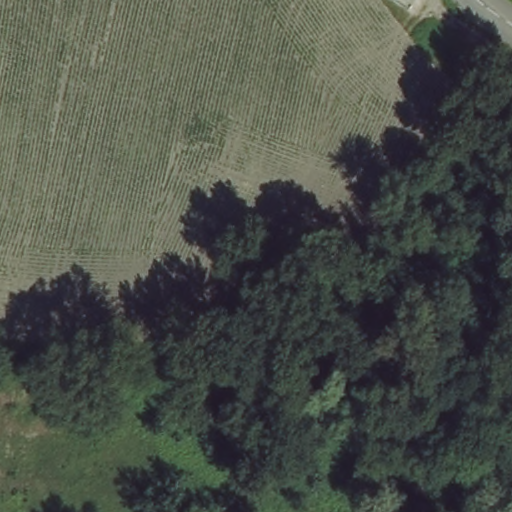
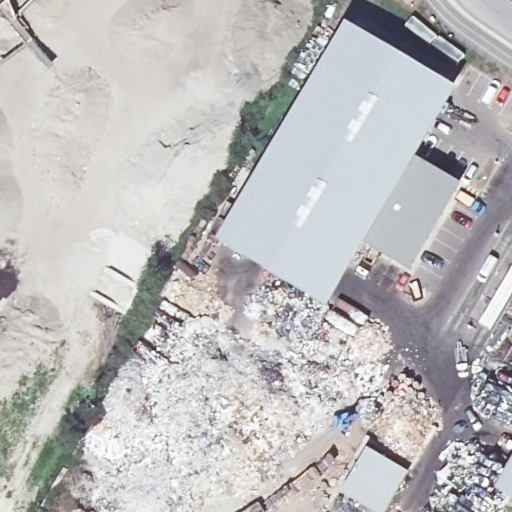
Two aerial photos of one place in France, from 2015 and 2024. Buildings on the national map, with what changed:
new [(350,27),(460,93),(420,161),(464,187),(414,273),(369,249),(332,310),(222,245),(350,27)]
new [(367,451),(401,471),(377,512),(369,512),(340,495),(367,451)]
new [(512,472),(512,502),(499,494),(512,472)]
demolished [(57,512),(0,512),(0,503),(57,503),(57,512)]

